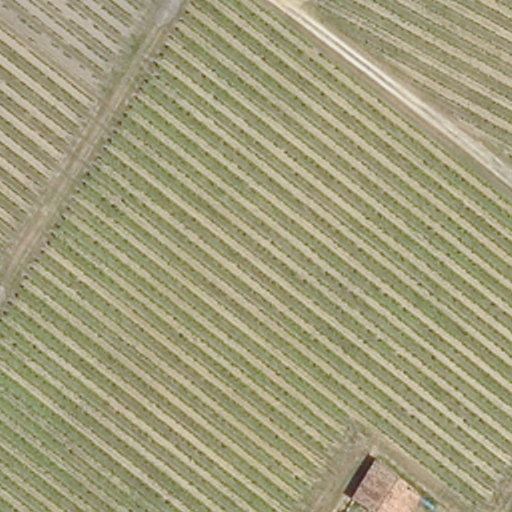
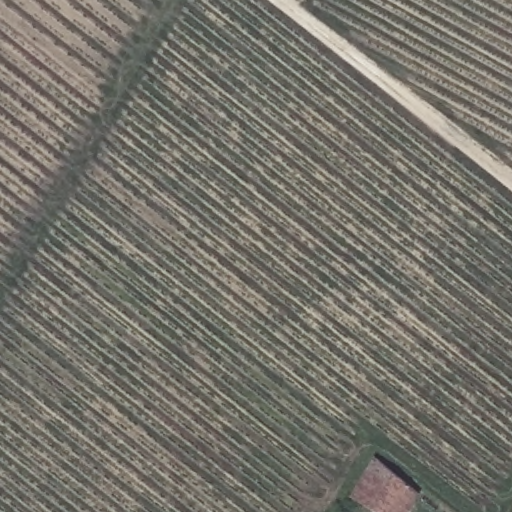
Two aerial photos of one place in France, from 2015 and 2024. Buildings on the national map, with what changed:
unchanged [(404,512),(376,512),(352,499),(377,457),(417,489),(404,512)]

